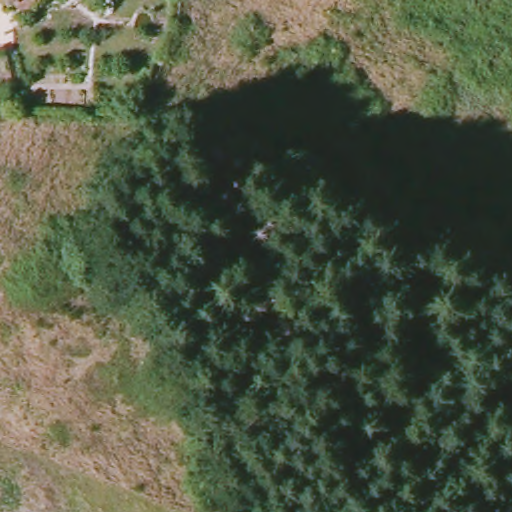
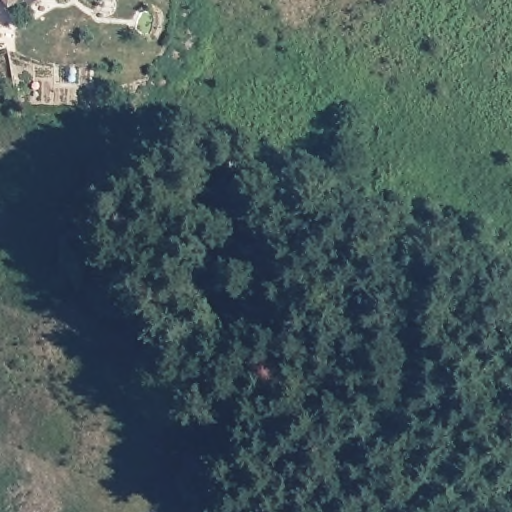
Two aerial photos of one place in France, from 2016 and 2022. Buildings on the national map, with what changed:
unchanged [(8,5),(3,0),(14,0),(8,5)]

